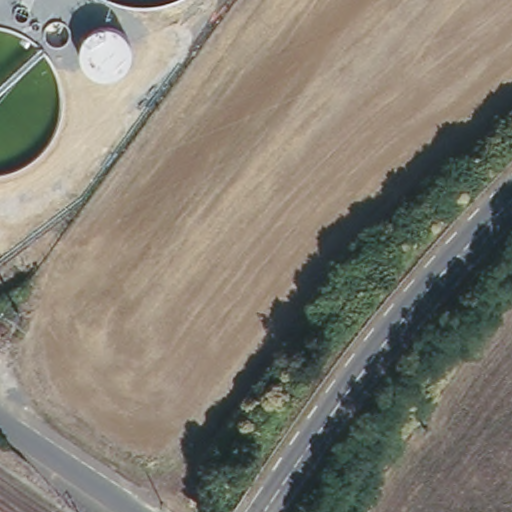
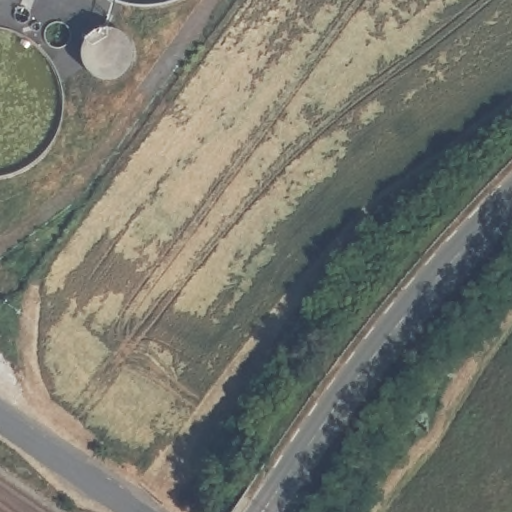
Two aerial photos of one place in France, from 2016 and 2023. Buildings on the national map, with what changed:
[]

